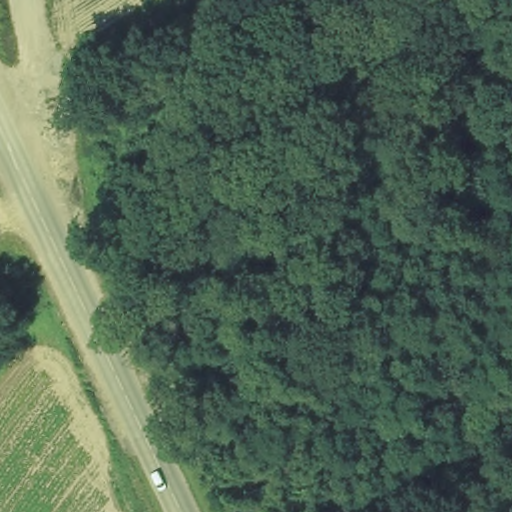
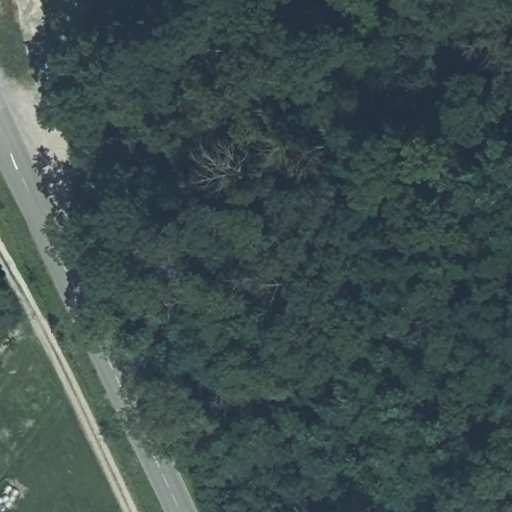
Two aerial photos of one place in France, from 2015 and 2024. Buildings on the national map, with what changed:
[]

